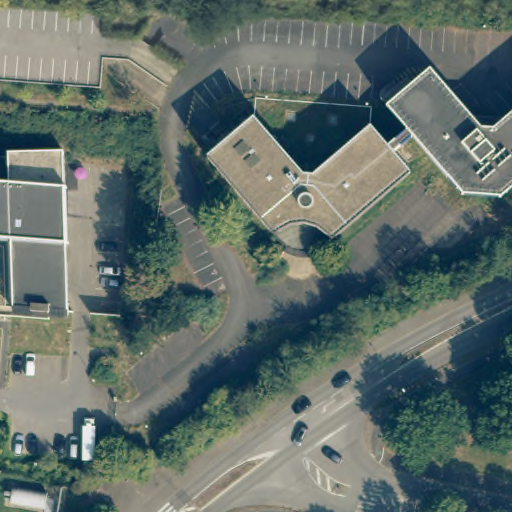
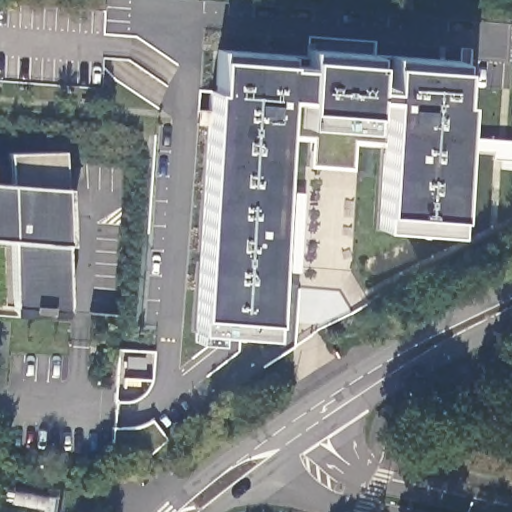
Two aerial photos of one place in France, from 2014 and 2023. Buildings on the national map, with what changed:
unchanged [(103,37),(102,58),(100,87),(0,80),(0,4),(105,12),(103,37)]
new [(380,228),(379,212),(389,100),(372,98),(370,114),(368,129),(304,125),(306,110),(304,110),(305,99),(286,97),(270,321),(268,336),(195,331),(198,316),(194,315),(212,92),(218,92),(220,59),(220,51),(290,56),(291,64),(309,67),(309,59),(309,51),(376,56),(375,64),(373,89),(390,91),(391,65),(392,57),(460,62),(460,70),(458,103),(463,103),(454,218),(452,232),(380,228)]
demolished [(405,130),(384,106),(416,79),(438,80),(478,127),(492,128),(512,111),(512,187),(500,197),(462,194),(412,138),(393,155),(390,151),(386,146),(405,130)]
new [(376,144),(356,142),(354,170),(311,166),(313,139),(285,137),(283,137),(286,97),(305,99),(304,110),(306,110),(304,125),(368,129),(370,114),(372,98),(389,100),(385,147),(376,144)]
demolished [(386,146),(390,151),(393,155),(410,175),(320,249),(320,253),(313,255),(303,256),(292,255),(282,252),(283,248),(207,158),(254,118),(256,98),(350,105),(371,107),(370,128),(385,145),(386,146)]
unchanged [(8,149),(62,147),(69,315),(14,309),(14,241),(0,240),(0,178),(9,179),(8,149)]

